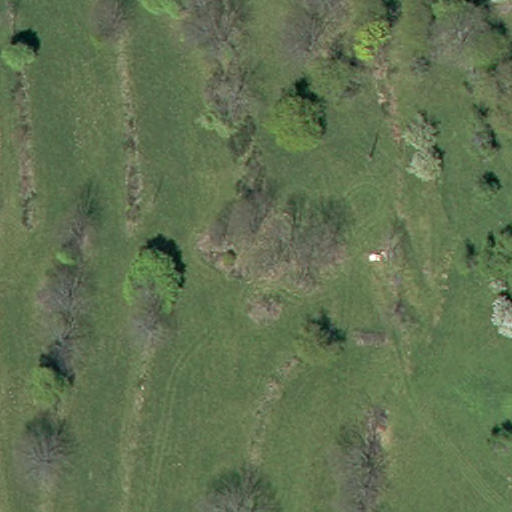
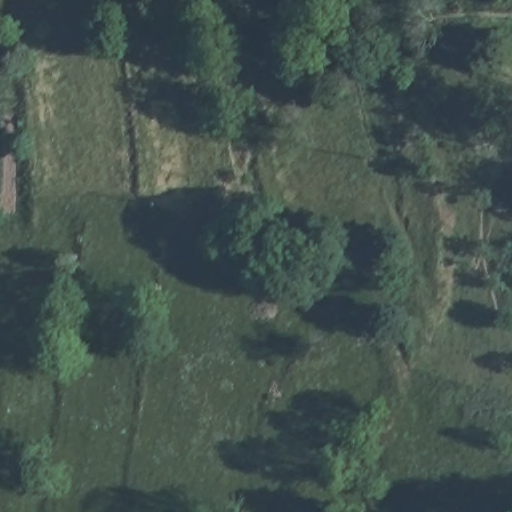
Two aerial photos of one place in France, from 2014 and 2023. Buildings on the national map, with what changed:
[]

